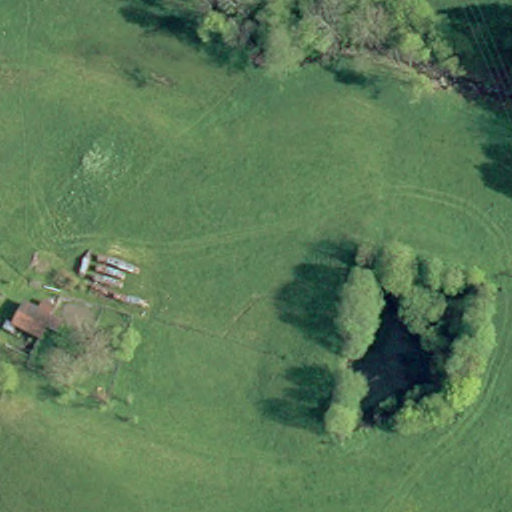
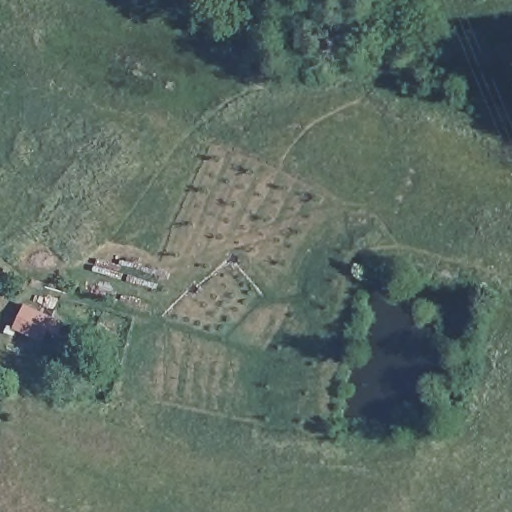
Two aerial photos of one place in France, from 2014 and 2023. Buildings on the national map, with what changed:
unchanged [(18,300),(54,320),(41,341),(5,330),(18,300)]

